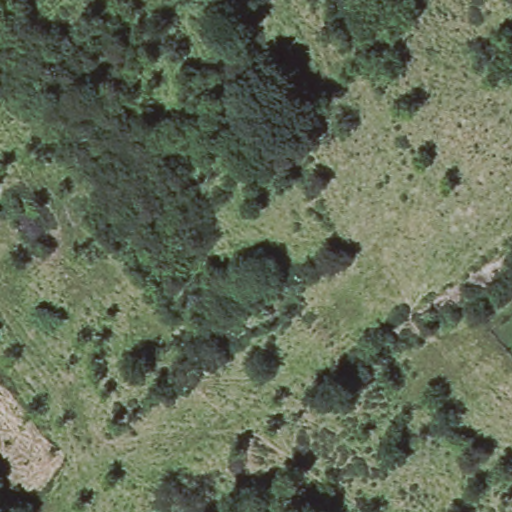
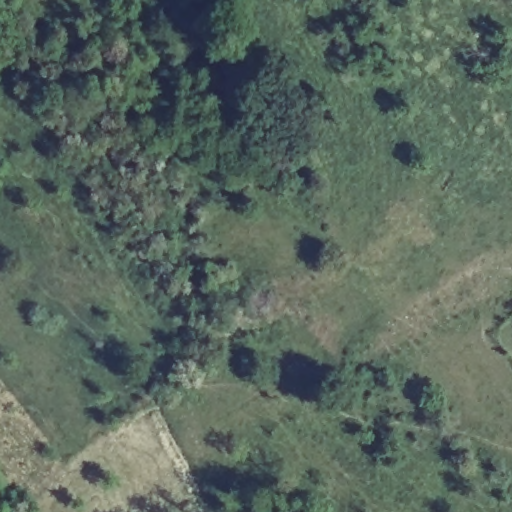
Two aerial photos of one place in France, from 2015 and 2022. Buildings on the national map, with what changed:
[]

